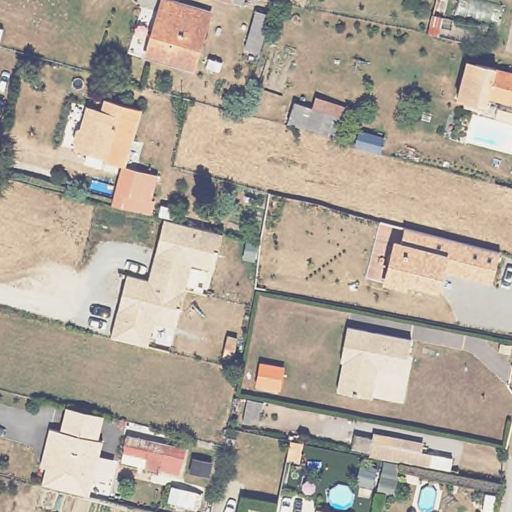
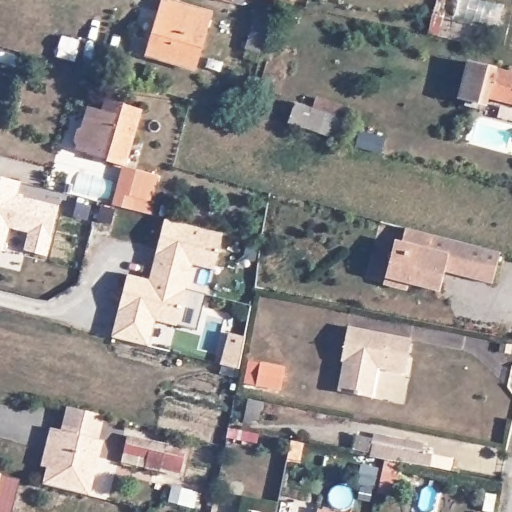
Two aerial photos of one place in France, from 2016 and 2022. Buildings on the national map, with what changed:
unchanged [(229,0),(244,0),(243,5),(229,0)]
unchanged [(207,16),(188,71),(143,55),(162,1),(207,16)]
unchanged [(268,22),(261,40),(246,35),(253,17),(268,22)]
unchanged [(467,105),(473,77),(481,78),(483,70),(512,76),(512,106),(488,101),(486,110),(467,105)]
unchanged [(306,128),(298,125),(266,116),(273,95),(304,104),(304,105),(301,115),(309,118),(306,128)]
unchanged [(101,111),(106,100),(143,110),(125,169),(73,151),(86,106),(101,111)]
unchanged [(338,126),(362,133),(358,147),(334,140),(338,126)]
unchanged [(155,180),(150,199),(133,194),(139,175),(155,180)]
new [(13,195),(55,206),(43,255),(22,250),(26,231),(5,225),(0,244),(0,177),(16,181),(13,195)]
unchanged [(126,275),(148,280),(161,219),(223,236),(215,269),(189,264),(175,325),(153,320),(148,346),(109,338),(126,275)]
unchanged [(500,253),(491,282),(437,272),(433,290),(387,277),(395,244),(401,245),(405,230),(500,253)]
unchanged [(323,352),(330,318),(393,330),(386,365),(359,360),(354,389),(320,382),(325,353),(323,352)]
unchanged [(265,359),(261,381),(240,377),(244,355),(265,359)]
unchanged [(244,402),(241,402),(239,412),(233,411),(232,415),(225,414),(229,390),(230,391),(245,393),(244,402)]
unchanged [(104,442),(101,458),(116,462),(115,470),(109,482),(93,481),(90,497),(41,486),(47,468),(41,467),(50,429),(104,442)]
unchanged [(432,448),(462,453),(460,466),(440,463),(392,454),(382,452),(383,448),(365,445),(368,431),(387,435),(388,430),(400,432),(433,438),(432,448)]
unchanged [(126,433),(149,439),(150,437),(165,441),(158,470),(119,461),(126,433)]
unchanged [(401,492),(386,489),(393,458),(408,460),(401,492)]
unchanged [(172,503),(174,496),(176,488),(203,495),(201,502),(199,510),(172,503)]
unchanged [(328,512),(321,512),(321,510),(328,512)]

